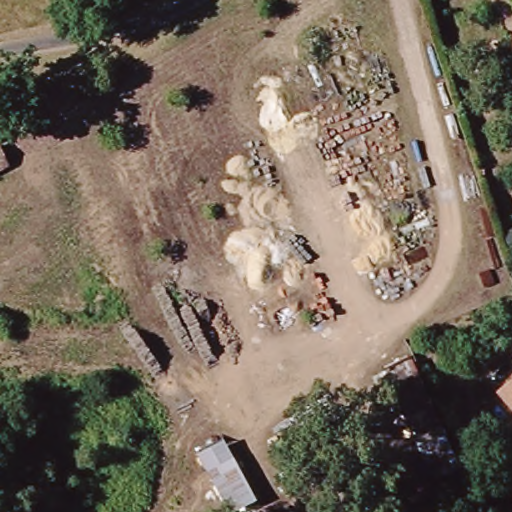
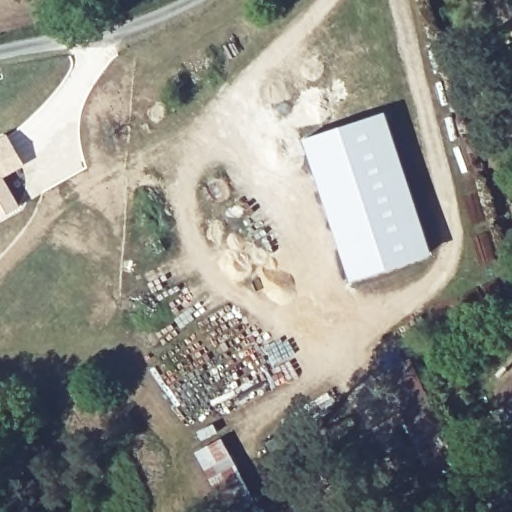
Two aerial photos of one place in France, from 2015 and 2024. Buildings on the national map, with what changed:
new [(385,110),(433,255),(350,284),(302,138),(385,110)]
unchanged [(499,390),(512,379),(512,405),(499,390)]
unchanged [(405,433),(434,422),(453,465),(431,479),(405,433)]
unchanged [(198,454),(223,439),(253,499),(228,512),(226,512),(198,454)]

